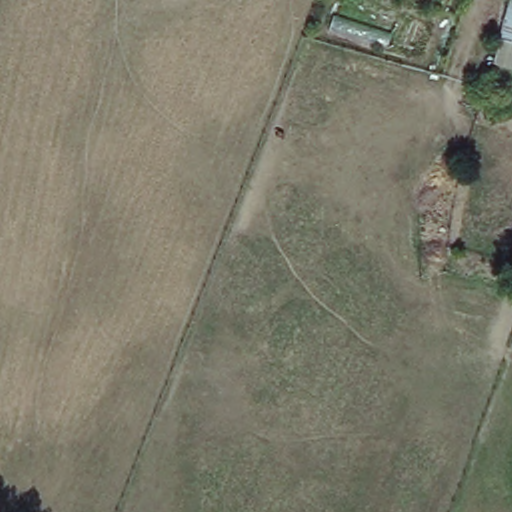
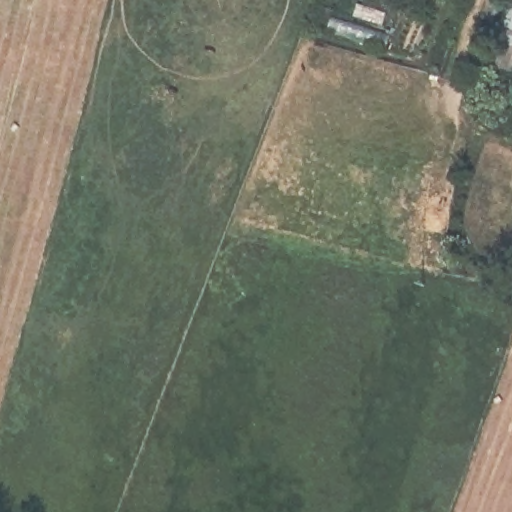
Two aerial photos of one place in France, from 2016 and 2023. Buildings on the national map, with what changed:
unchanged [(488,67),(505,0),(512,0),(512,72),(488,67)]

